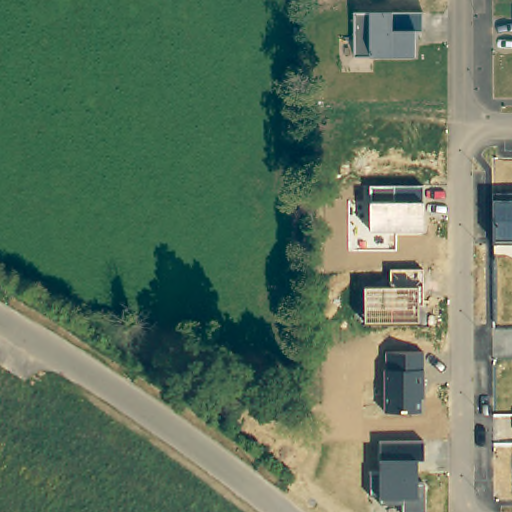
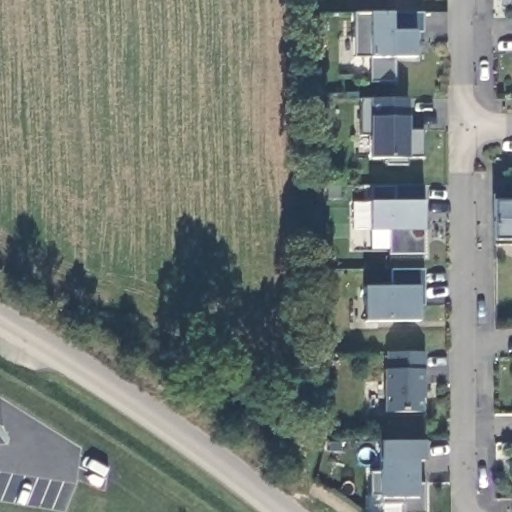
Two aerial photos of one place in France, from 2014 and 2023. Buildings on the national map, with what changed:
unchanged [(371,13),(393,12),(422,13),(422,32),(416,32),(417,57),(370,57),(354,57),(354,12),(371,13)]
new [(364,98),(412,99),(411,130),(427,130),(427,157),(411,157),(411,165),(391,165),(391,158),(375,158),(375,136),(364,136),(364,98)]
unchanged [(423,185),(423,201),(424,229),(370,230),(371,201),(370,186),(423,185)]
unchanged [(494,239),(495,201),(494,196),(512,196),(512,245),(494,246),(494,239)]
unchanged [(424,269),(423,306),(418,305),(419,322),(364,321),(365,287),(393,287),(392,270),(424,269)]
unchanged [(384,370),(389,370),(388,353),(425,352),(426,398),(421,399),(422,412),(385,413),(384,370)]
unchanged [(380,476),(380,461),(380,442),(425,442),(424,461),(417,461),(418,485),(425,485),(425,512),(403,512),(404,504),(380,505),(380,497),(371,496),(371,475),(380,476)]

